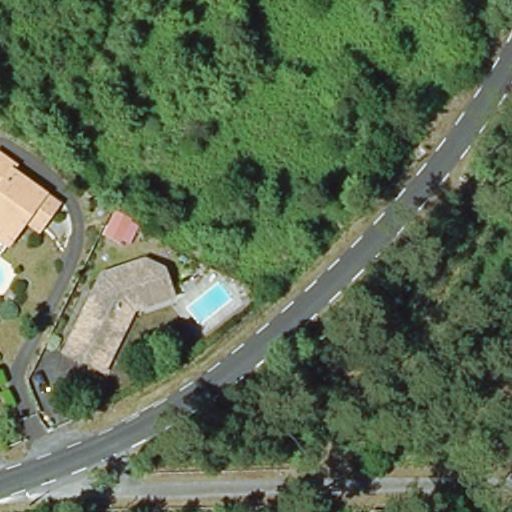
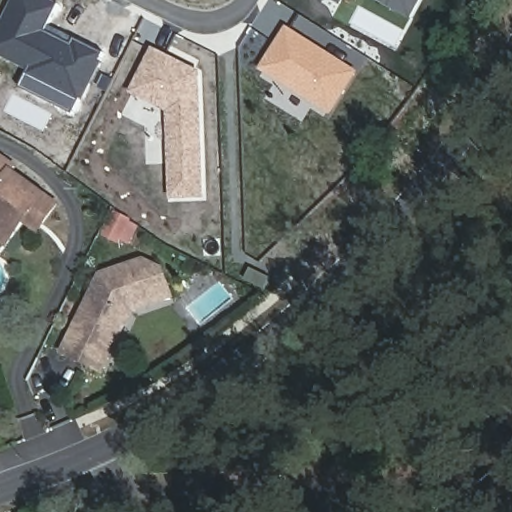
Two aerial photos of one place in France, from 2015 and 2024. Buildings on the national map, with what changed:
new [(0,29),(14,0),(50,0),(59,4),(44,31),(72,44),(74,40),(103,54),(99,60),(103,61),(84,100),(80,98),(73,114),(20,86),(29,69),(0,55),(0,29)]
new [(330,0),(343,0),(340,5),(330,0)]
new [(411,18),(376,0),(421,0),(411,18)]
new [(357,72),(330,115),(258,69),(285,25),(357,72)]
new [(152,47),(199,71),(205,198),(170,199),(164,112),(129,93),(152,47)]
unchanged [(10,248),(0,241),(0,195),(0,156),(19,169),(15,174),(63,207),(51,222),(43,235),(28,224),(10,248)]
new [(130,243),(102,235),(113,212),(139,225),(130,243)]
unchanged [(91,363),(65,353),(97,273),(138,255),(158,264),(168,289),(123,308),(125,315),(114,346),(104,368),(91,363)]

